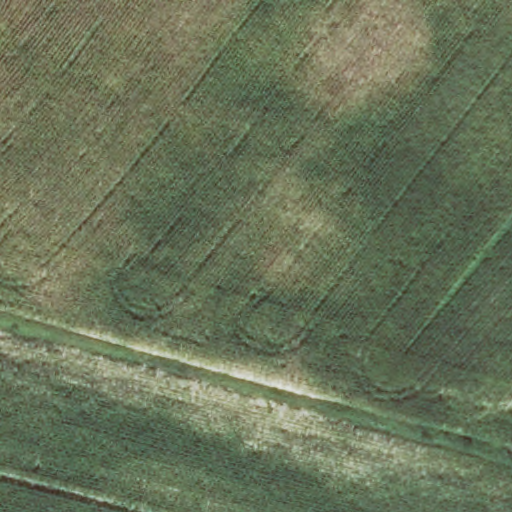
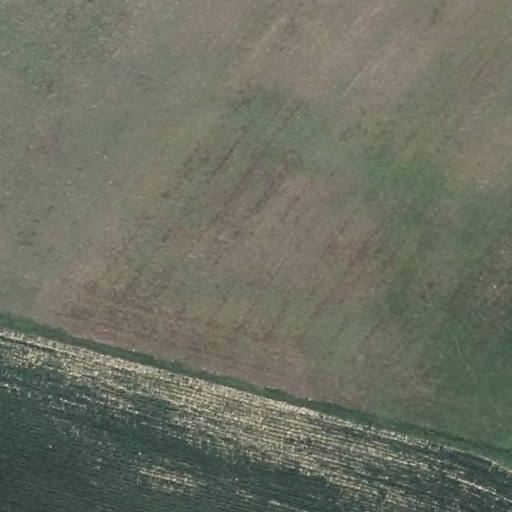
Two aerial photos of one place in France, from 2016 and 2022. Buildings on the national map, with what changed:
[]

